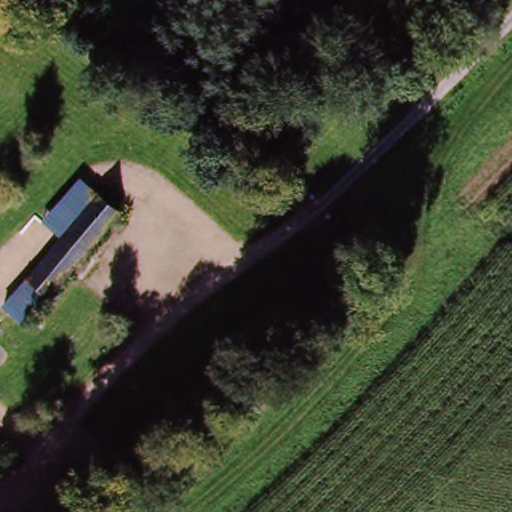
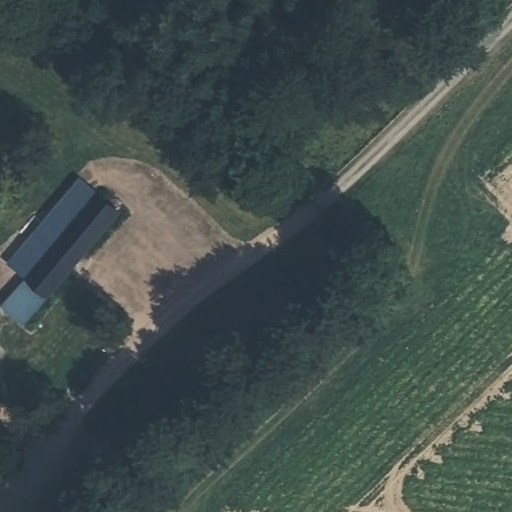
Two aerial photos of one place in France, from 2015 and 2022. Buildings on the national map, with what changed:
unchanged [(75,278),(65,270),(36,303),(18,288),(94,197),(113,213),(82,249),(92,259),(75,278)]

